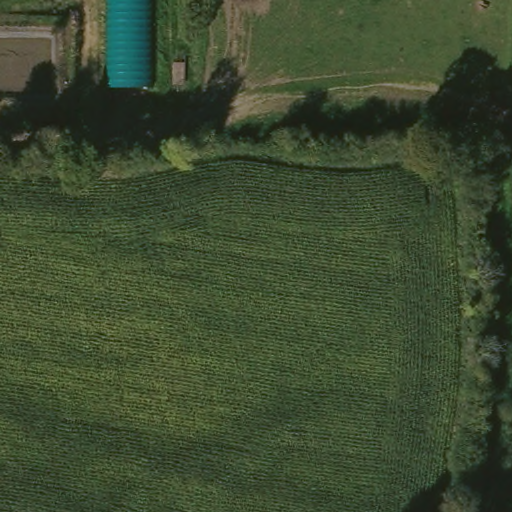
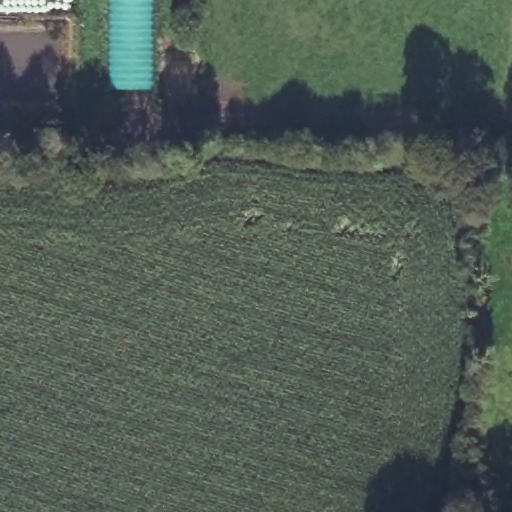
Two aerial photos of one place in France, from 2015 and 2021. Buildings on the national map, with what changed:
unchanged [(107,88),(108,0),(155,0),(154,86),(107,88)]

